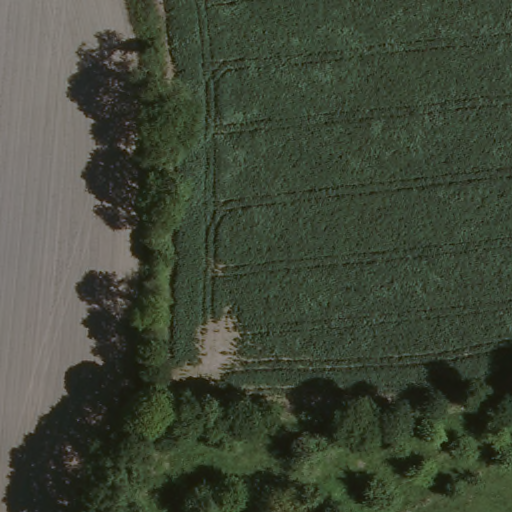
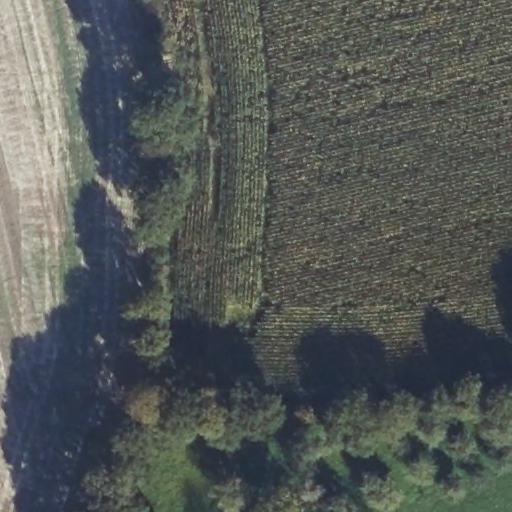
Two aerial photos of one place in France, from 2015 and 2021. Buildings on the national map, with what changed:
[]

